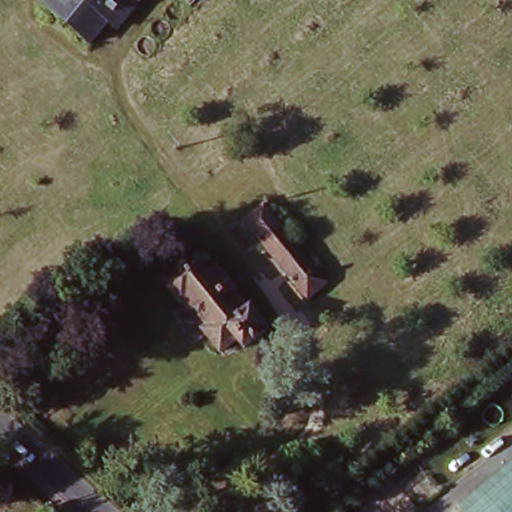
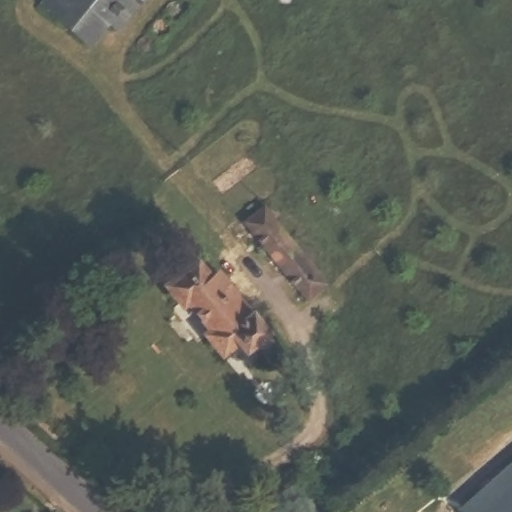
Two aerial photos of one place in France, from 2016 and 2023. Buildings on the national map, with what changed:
unchanged [(86,50),(30,5),(34,0),(130,0),(121,10),(86,50)]
unchanged [(187,6),(181,0),(192,0),(187,6)]
unchanged [(326,288),(305,302),(242,223),(263,207),(326,288)]
unchanged [(201,275),(210,269),(260,330),(260,332),(237,349),(230,340),(214,352),(200,334),(203,331),(180,303),(176,307),(158,283),(189,260),(201,275)]
unchanged [(512,459),(512,512),(452,512),(451,511),(512,459)]

